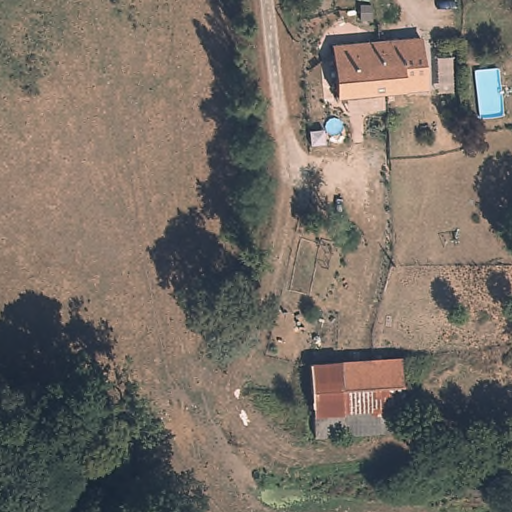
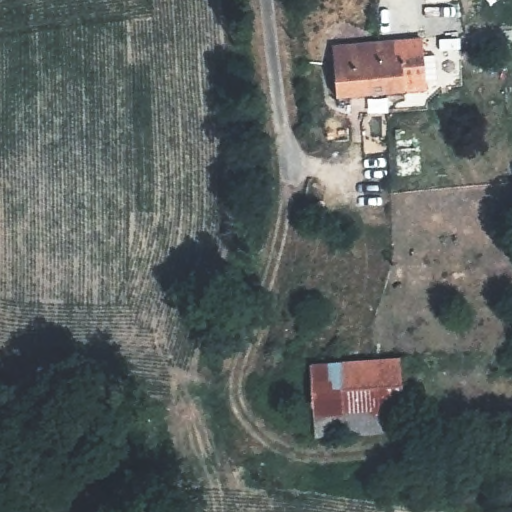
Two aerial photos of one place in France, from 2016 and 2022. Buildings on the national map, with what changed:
unchanged [(333,41),(420,30),(426,83),(402,86),(339,92),(333,41)]
unchanged [(398,361),(404,430),(358,434),(315,438),(310,396),(258,401),(256,320),(262,320),(332,321),(333,338),(315,339),(316,360),(333,359),(334,368),(398,361)]

